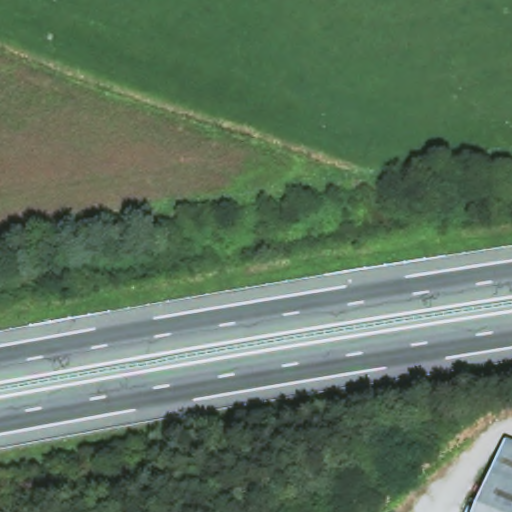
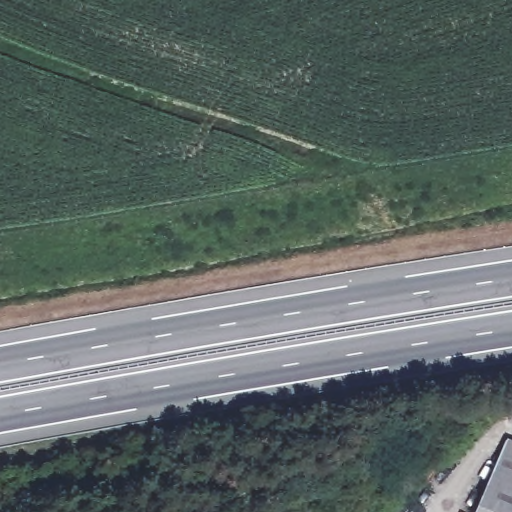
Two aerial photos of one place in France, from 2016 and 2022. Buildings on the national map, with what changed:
unchanged [(512,444),(512,512),(478,512),(509,443),(512,444)]

